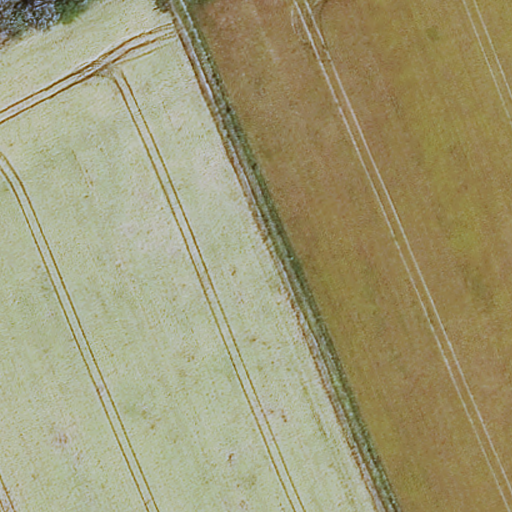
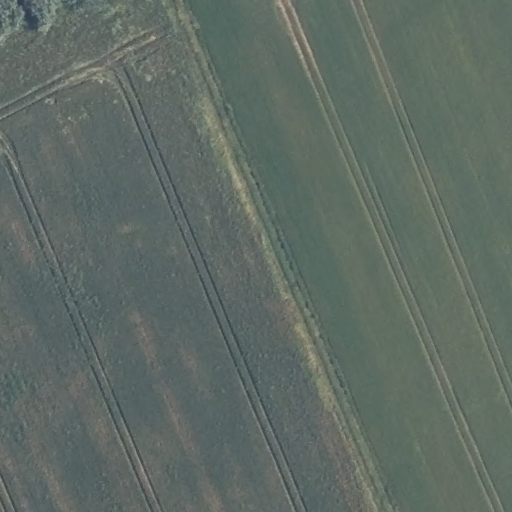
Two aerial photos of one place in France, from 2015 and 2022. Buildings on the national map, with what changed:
[]

